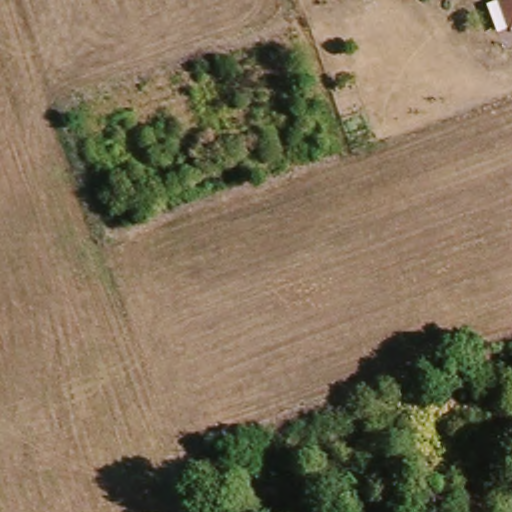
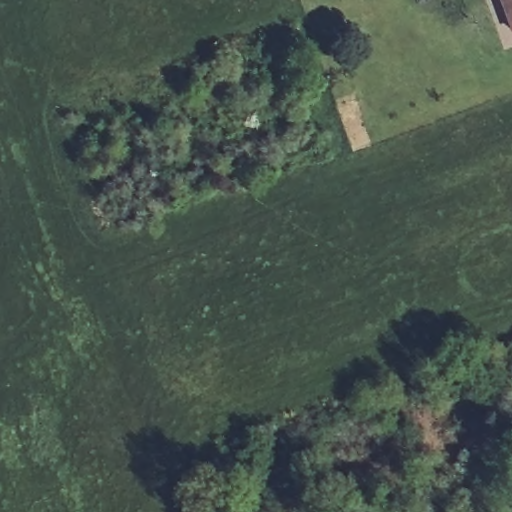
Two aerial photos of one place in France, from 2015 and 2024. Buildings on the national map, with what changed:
unchanged [(503,0),(512,0),(512,24),(503,0)]

